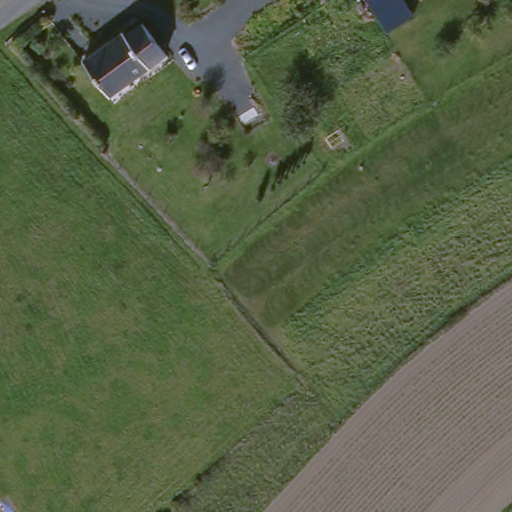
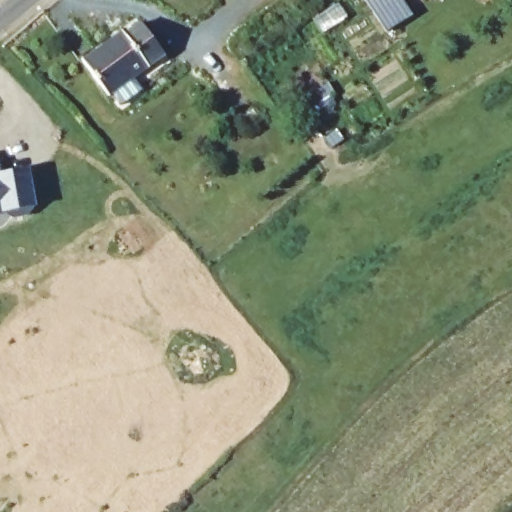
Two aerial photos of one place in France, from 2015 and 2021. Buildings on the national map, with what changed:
unchanged [(366,0),(404,0),(414,16),(386,31),(366,0)]
unchanged [(89,61),(129,31),(131,34),(147,22),(170,53),(114,95),(89,61)]
new [(28,170),(34,207),(27,216),(12,219),(2,213),(0,213),(0,157),(28,170)]

